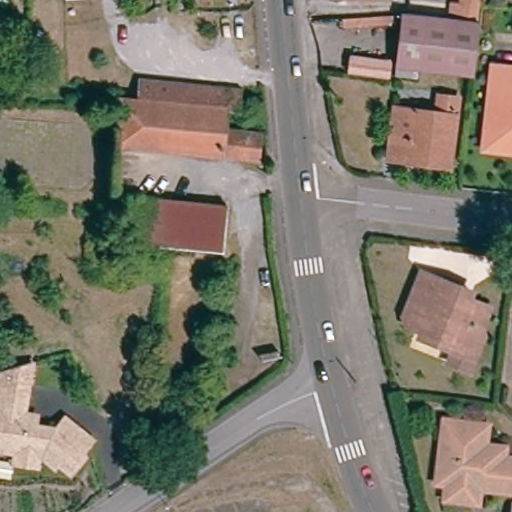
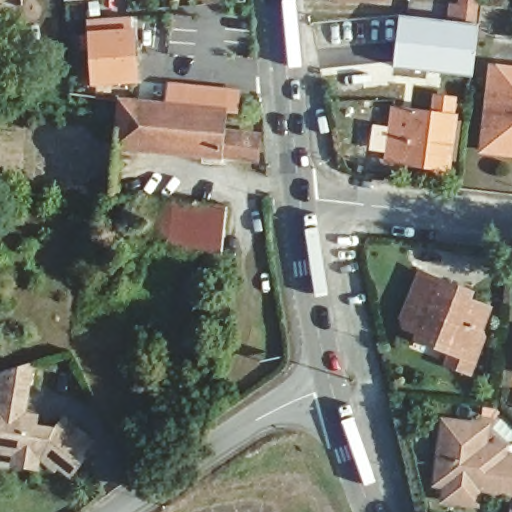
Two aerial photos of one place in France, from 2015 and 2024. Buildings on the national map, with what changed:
new [(89,17),(87,1),(93,0),(99,0),(101,17),(136,16),(140,82),(90,87),(86,17),(89,17)]
unchanged [(385,4),(330,2),(330,0),(385,0),(385,4)]
unchanged [(395,74),(401,20),(451,26),(453,11),(462,11),(463,0),(479,0),(475,28),(478,29),(472,84),(395,74)]
unchanged [(485,130),(493,66),(512,68),(512,154),(482,150),(485,130)]
unchanged [(228,115),(140,105),(141,86),(241,96),(240,116),(228,115)]
unchanged [(115,152),(115,131),(119,131),(121,102),(140,105),(228,115),(225,137),(261,140),(260,164),(115,152)]
unchanged [(435,119),(437,102),(460,105),(450,173),(388,166),(395,114),(435,119)]
unchanged [(136,206),(232,217),(228,261),(131,252),(136,206)]
unchanged [(467,378),(445,370),(450,358),(414,345),(416,338),(403,332),(398,322),(415,281),(454,297),(467,302),(465,310),(483,317),(477,335),(481,343),(467,378)]
unchanged [(20,411),(17,424),(32,426),(31,438),(42,439),(42,445),(51,445),(65,430),(93,452),(80,467),(84,470),(71,486),(59,475),(53,481),(37,467),(36,477),(10,476),(11,465),(0,464),(0,383),(24,376),(20,411)]
unchanged [(472,512),(468,512),(448,509),(450,495),(440,494),(447,432),(487,437),(485,456),(505,458),(503,470),(512,471),(512,503),(480,500),(480,512),(472,512)]

